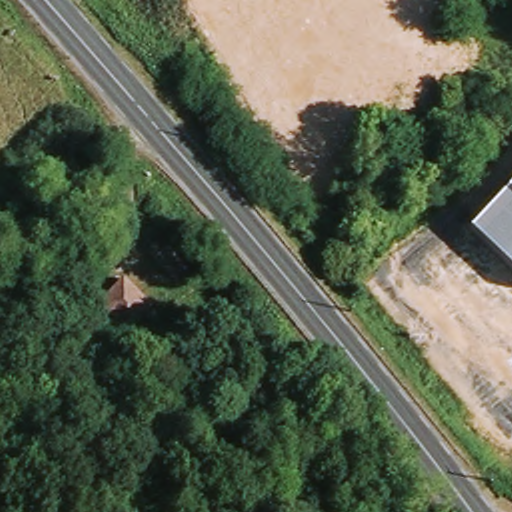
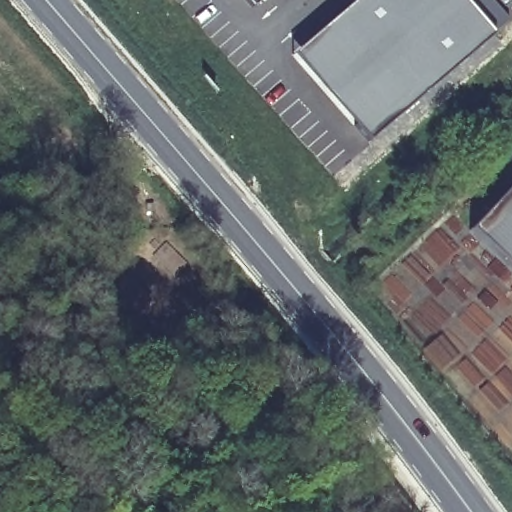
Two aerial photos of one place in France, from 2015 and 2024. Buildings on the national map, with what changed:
new [(249,0),(259,0),(253,5),(249,0)]
new [(463,0),(490,33),(366,139),(352,124),(290,51),(305,39),(350,0),(463,0)]
unchanged [(469,230),(512,184),(512,269),(469,230)]
unchanged [(121,278),(148,309),(122,332),(95,300),(121,278)]

